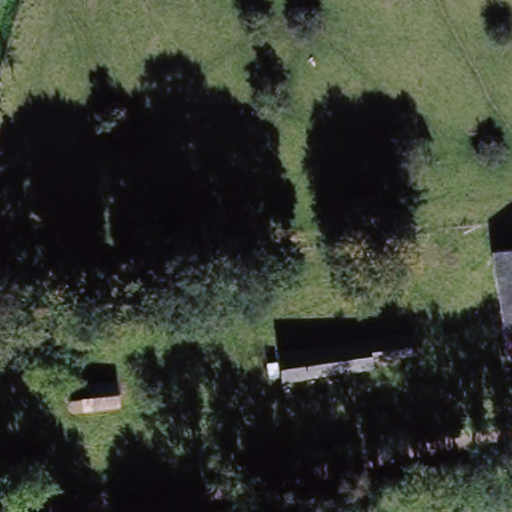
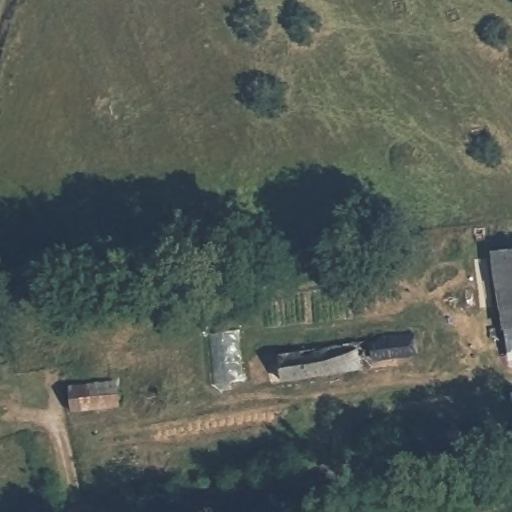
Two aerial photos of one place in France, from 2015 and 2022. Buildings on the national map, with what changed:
unchanged [(495,254),(512,252),(512,352),(510,353),(495,254)]
unchanged [(416,334),(419,358),(351,368),(351,373),(281,384),(276,355),(416,334)]
unchanged [(70,385),(118,381),(121,405),(72,410),(70,385)]
unchanged [(67,453),(69,465),(59,467),(57,454),(67,453)]

